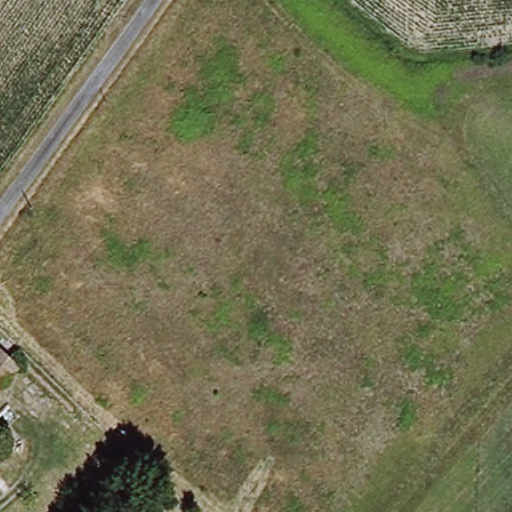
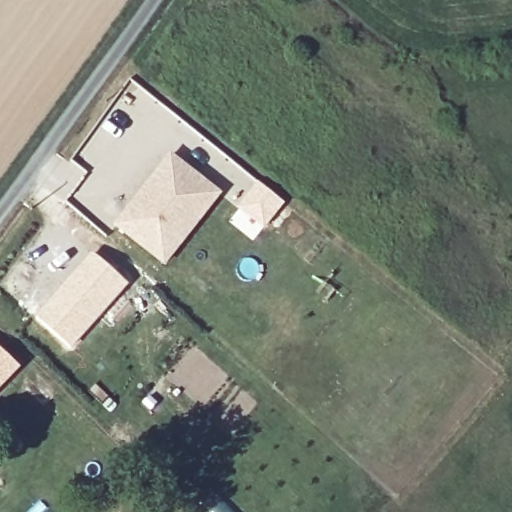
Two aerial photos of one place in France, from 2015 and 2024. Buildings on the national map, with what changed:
new [(171,154),(222,194),(164,265),(114,225),(171,154)]
new [(92,252),(128,285),(70,348),(35,317),(92,252)]
unchanged [(15,367),(0,383),(0,352),(15,367)]

